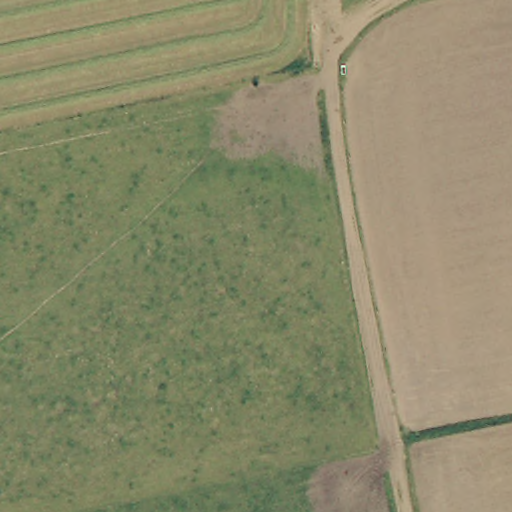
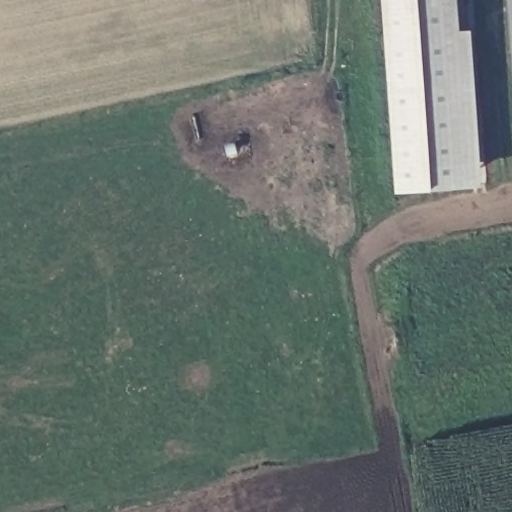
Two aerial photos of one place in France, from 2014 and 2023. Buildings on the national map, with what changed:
new [(464,29),(476,28),(487,187),(400,194),(387,0),(463,0),(464,29)]

